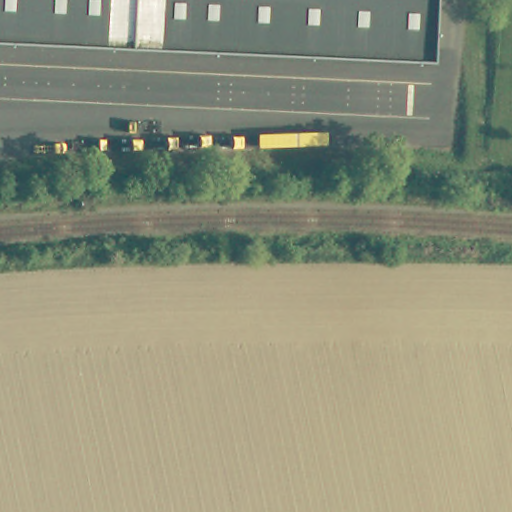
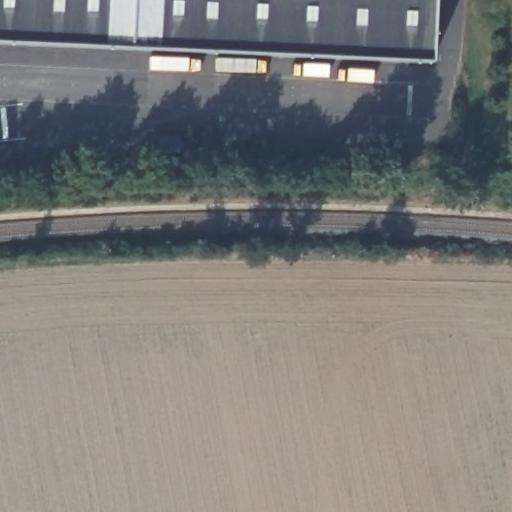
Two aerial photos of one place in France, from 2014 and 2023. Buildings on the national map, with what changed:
unchanged [(432,63),(0,42),(0,0),(436,0),(432,63)]

